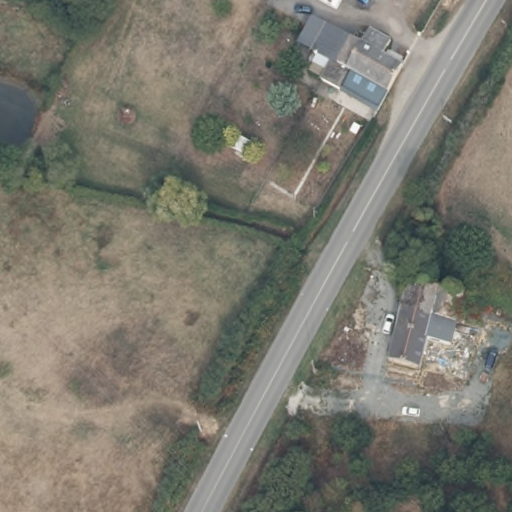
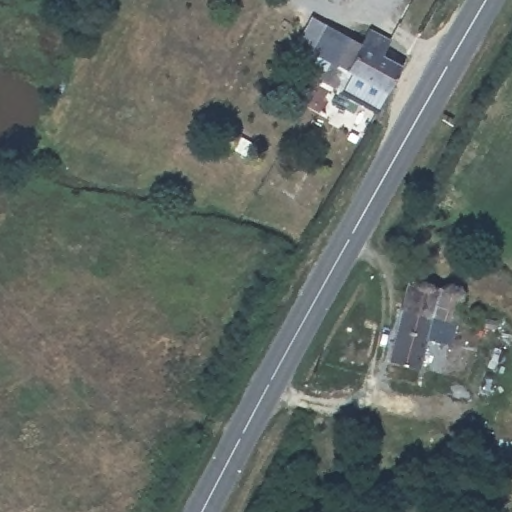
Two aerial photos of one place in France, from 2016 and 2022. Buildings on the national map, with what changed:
unchanged [(316,86),(327,62),(310,52),(324,26),(361,44),(347,77),(338,97),(316,86)]
unchanged [(390,91),(367,79),(363,87),(347,77),(361,44),(368,28),(390,40),(383,55),(402,65),(390,91)]
unchanged [(445,287),(443,292),(465,297),(456,326),(445,322),(400,311),(408,281),(440,287),(445,287)]
unchanged [(431,337),(420,372),(415,370),(413,373),(398,372),(400,361),(386,357),(400,311),(445,322),(441,339),(431,337)]
unchanged [(470,329),(475,315),(495,320),(492,335),(470,329)]

